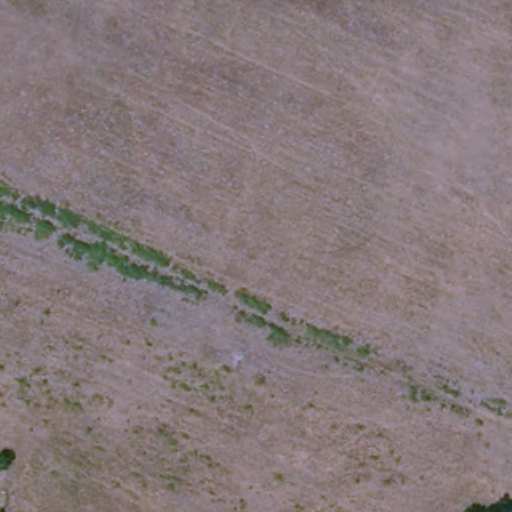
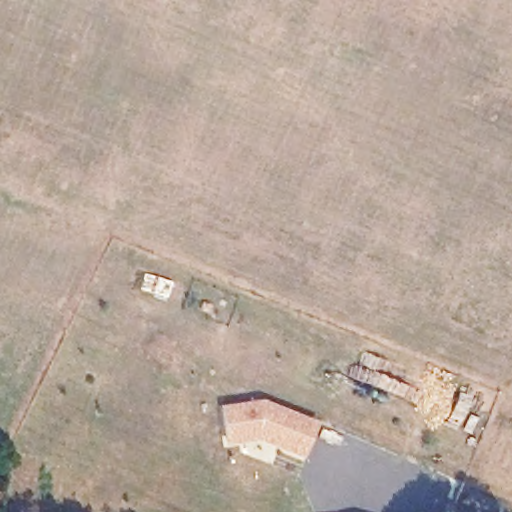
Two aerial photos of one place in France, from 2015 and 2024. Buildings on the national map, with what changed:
new [(262,400),(318,422),(305,458),(260,441),(227,446),(222,406),(262,400)]

